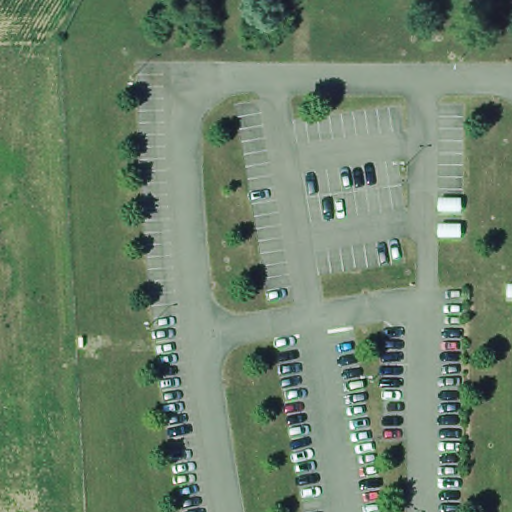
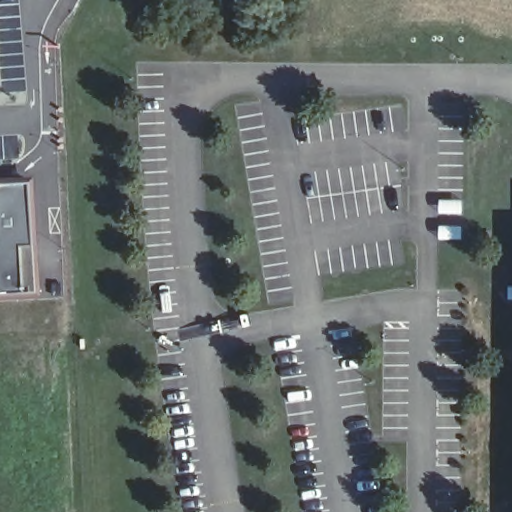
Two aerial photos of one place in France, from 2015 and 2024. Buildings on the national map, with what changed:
new [(33,178),(39,291),(0,293),(0,181),(33,178)]

